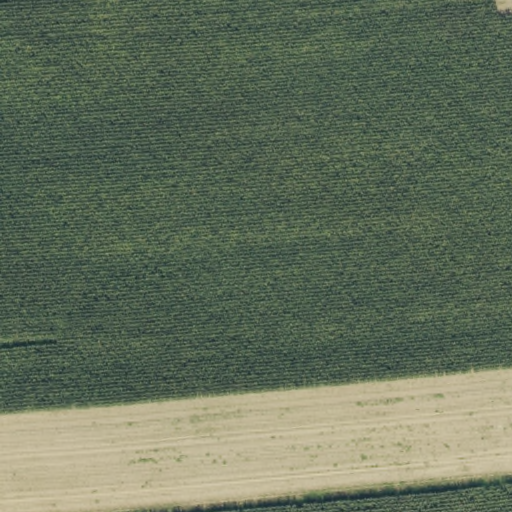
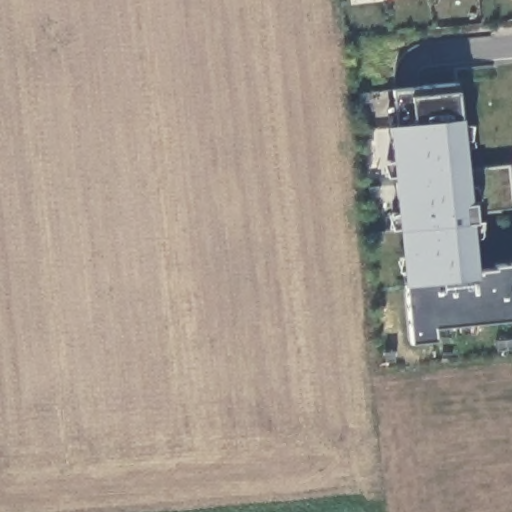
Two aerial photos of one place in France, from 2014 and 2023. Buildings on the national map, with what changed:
new [(460,93),(463,117),(468,168),(511,164),(512,177),(512,209),(473,212),(478,272),(496,270),(495,267),(512,264),(512,320),(436,327),(437,340),(412,343),(387,125),(401,123),(394,90),(457,84),(460,93)]

